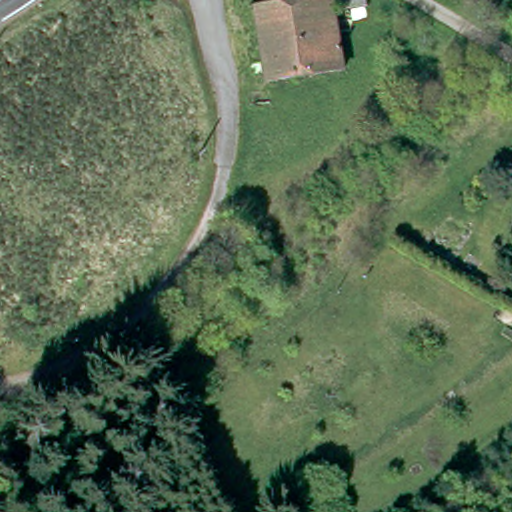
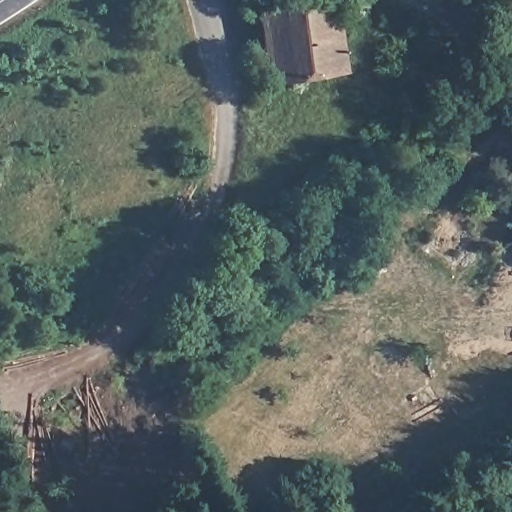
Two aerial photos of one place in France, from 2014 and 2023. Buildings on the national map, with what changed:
unchanged [(256,19),(329,2),(346,76),(276,93),(256,19)]
unchanged [(423,43),(415,58),(407,55),(416,40),(423,43)]

